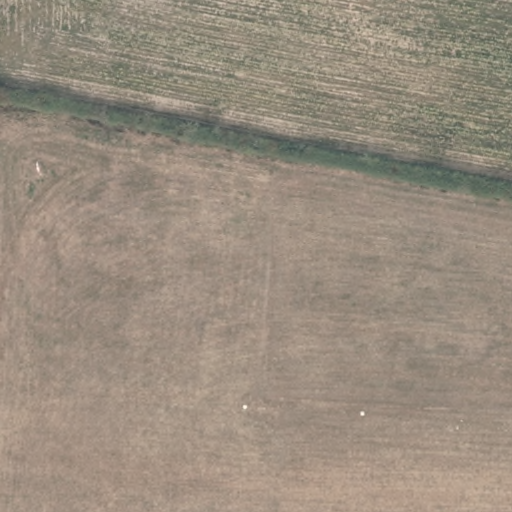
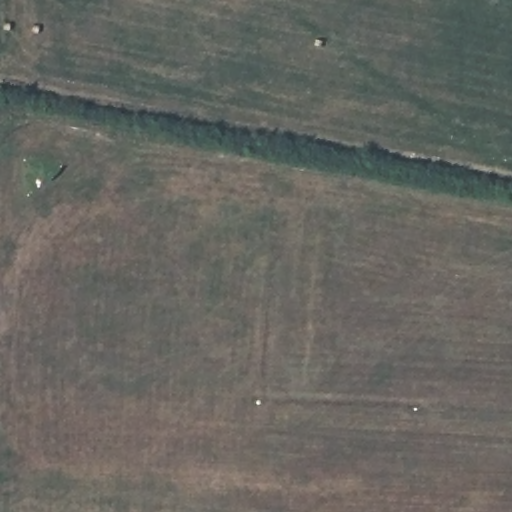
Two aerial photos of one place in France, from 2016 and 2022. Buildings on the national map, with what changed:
[]

